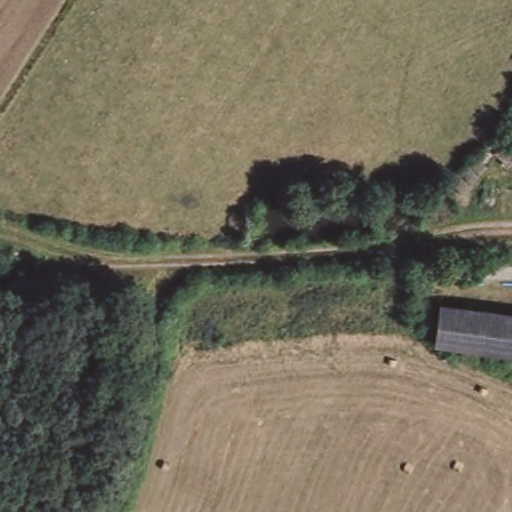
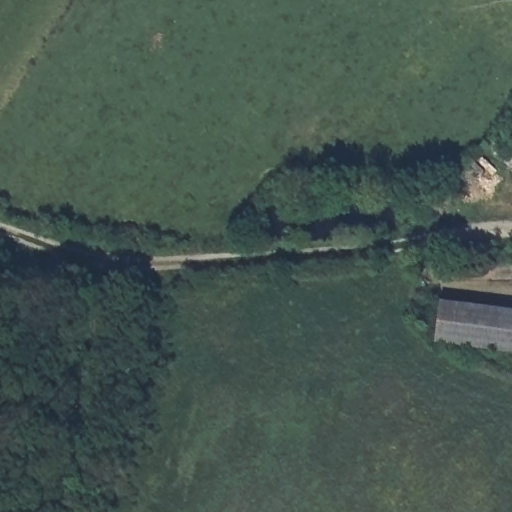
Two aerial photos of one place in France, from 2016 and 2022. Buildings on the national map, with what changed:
unchanged [(512,354),(430,341),(436,299),(512,310),(512,354)]

